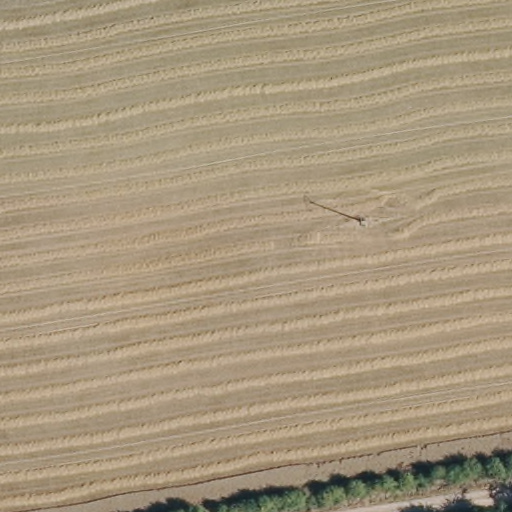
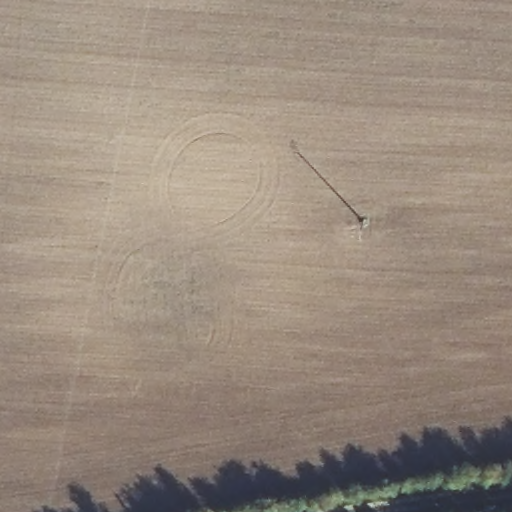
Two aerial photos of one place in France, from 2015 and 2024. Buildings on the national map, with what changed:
[]

